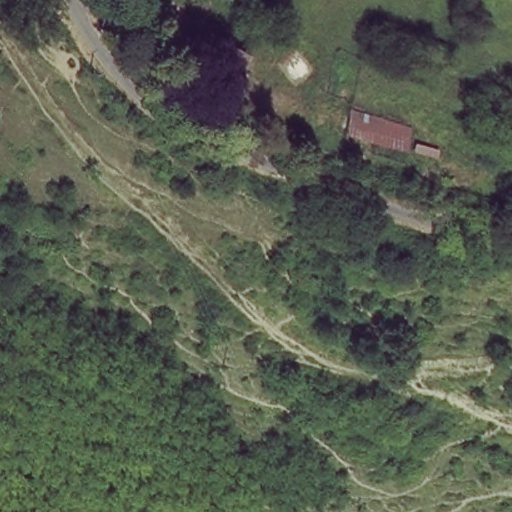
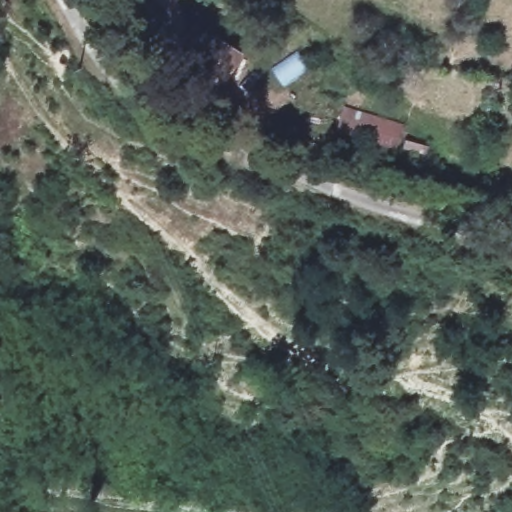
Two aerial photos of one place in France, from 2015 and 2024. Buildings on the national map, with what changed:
unchanged [(193,65),(206,40),(245,65),(230,90),(193,65)]
unchanged [(343,112),(403,125),(398,153),(339,139),(343,112)]

